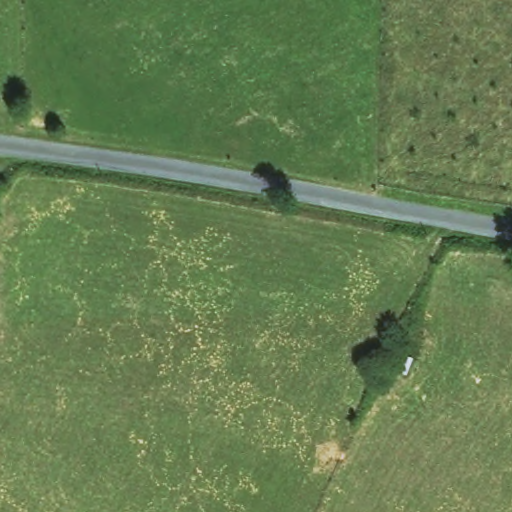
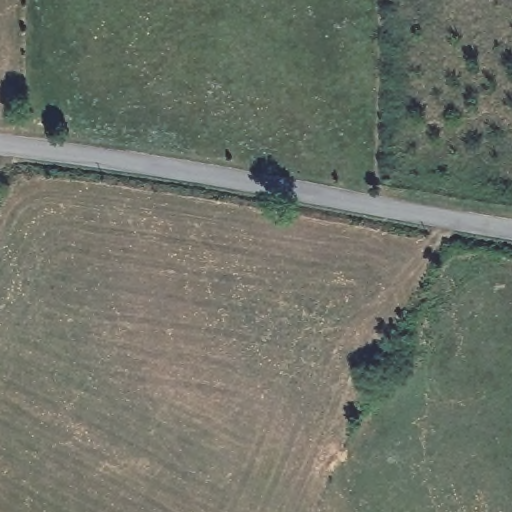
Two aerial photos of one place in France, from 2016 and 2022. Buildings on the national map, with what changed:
unchanged [(437,357),(407,346),(412,329),(425,333),(429,325),(440,330),(434,340),(444,344),(437,357)]

